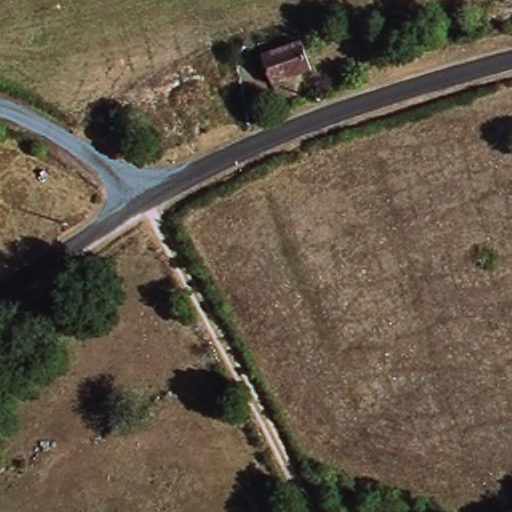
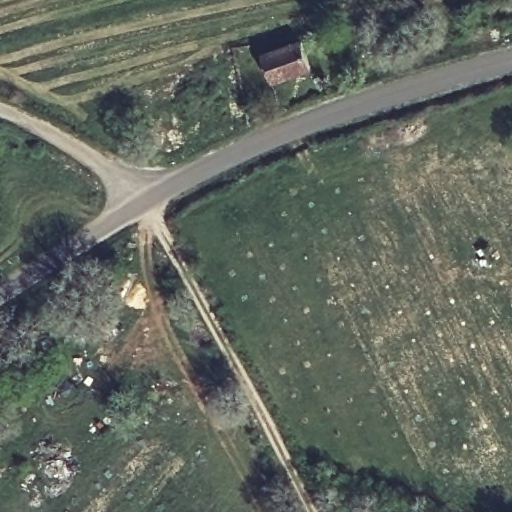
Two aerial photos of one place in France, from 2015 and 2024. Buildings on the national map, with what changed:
unchanged [(303,72),(269,81),(260,50),(294,41),(303,72)]

